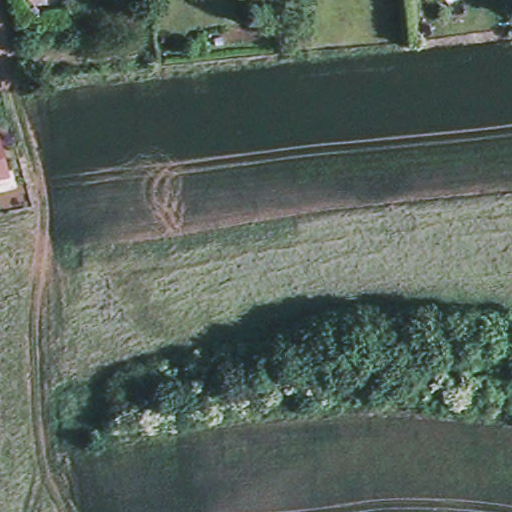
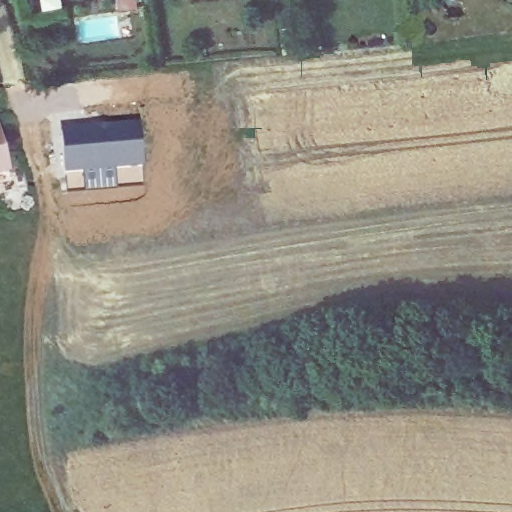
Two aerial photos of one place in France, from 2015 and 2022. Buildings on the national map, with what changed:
new [(145,121),(145,166),(66,170),(66,122),(145,121)]
unchanged [(9,172),(0,174),(0,141),(9,172)]

